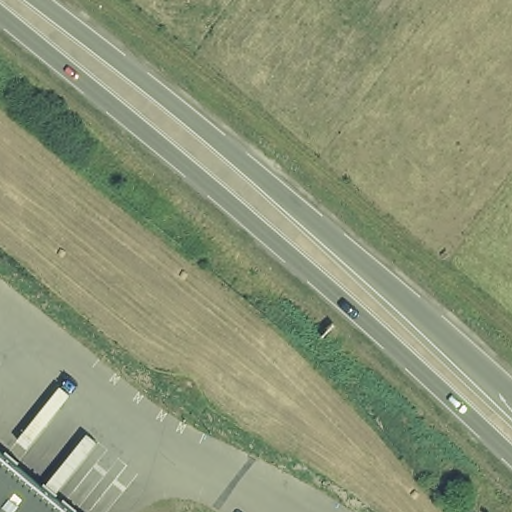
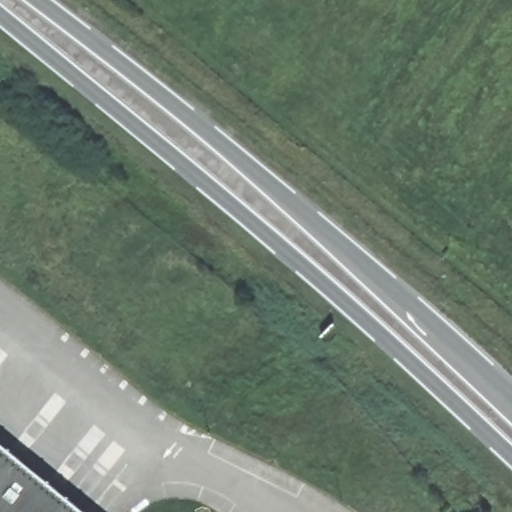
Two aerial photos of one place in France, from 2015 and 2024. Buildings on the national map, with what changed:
unchanged [(64,512),(0,512),(0,460),(64,512)]

